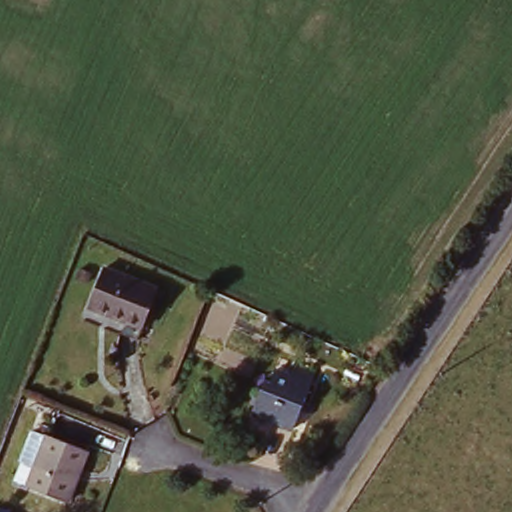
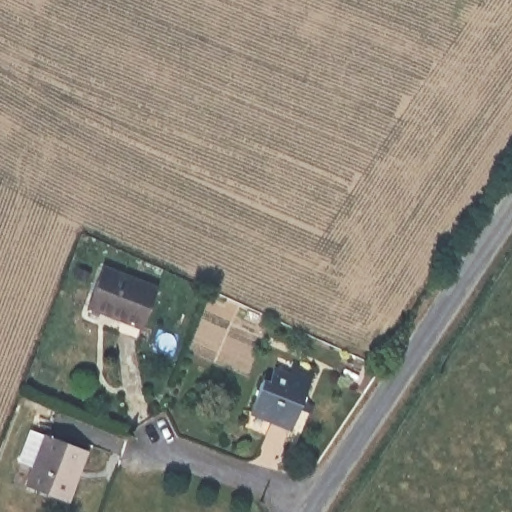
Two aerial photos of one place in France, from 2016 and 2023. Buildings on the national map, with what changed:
unchanged [(157,289),(141,329),(88,309),(104,269),(157,289)]
unchanged [(309,422),(298,417),(290,436),(268,427),(248,418),(263,385),(269,387),(274,375),(287,381),(293,369),(314,379),(310,391),(302,408),(313,413),(309,422)]
unchanged [(86,452),(66,504),(27,489),(35,469),(47,438),(86,452)]

